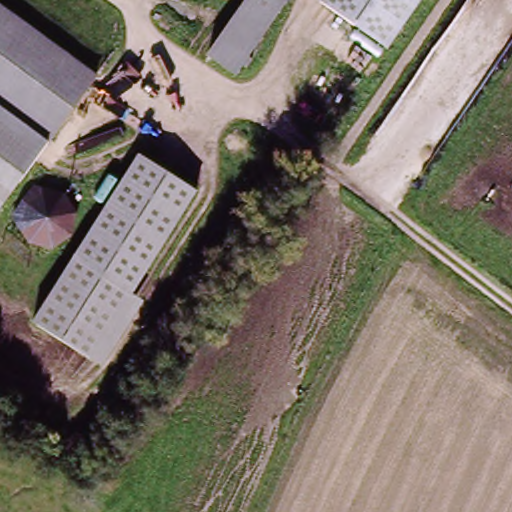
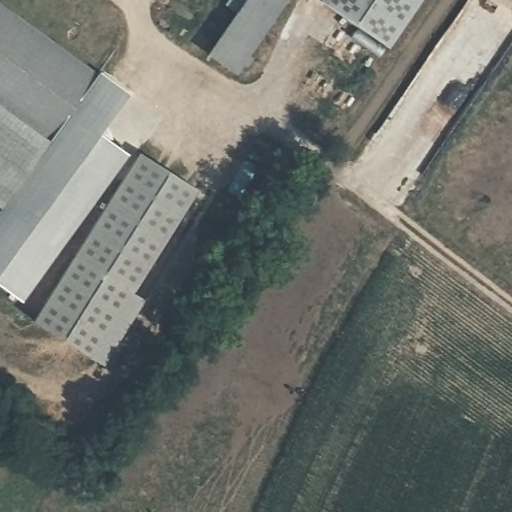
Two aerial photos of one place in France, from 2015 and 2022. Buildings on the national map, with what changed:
unchanged [(207,59),(246,0),(286,0),(234,76),(207,59)]
unchanged [(320,1),(317,0),(421,0),(388,49),(320,1)]
unchanged [(51,141),(0,105),(0,3),(98,73),(51,141)]
new [(131,96),(101,134),(129,155),(22,303),(0,287),(0,211),(1,211),(0,210),(0,200),(7,206),(51,141),(98,73),(131,96)]
unchanged [(51,141),(7,206),(0,200),(0,105),(51,141)]
unchanged [(76,261),(136,153),(196,186),(135,294),(76,261)]
unchanged [(98,361),(38,327),(76,261),(135,294),(98,361)]

